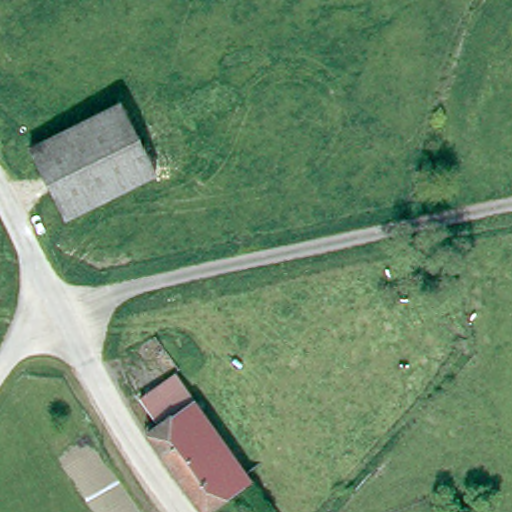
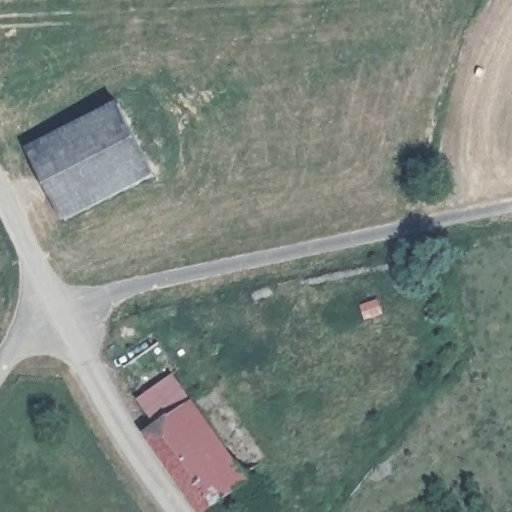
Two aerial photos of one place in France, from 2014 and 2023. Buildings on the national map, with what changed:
unchanged [(146,101),(178,172),(46,232),(14,161),(146,101)]
unchanged [(150,399),(182,376),(257,482),(214,512),(154,429),(165,421),(150,399)]

